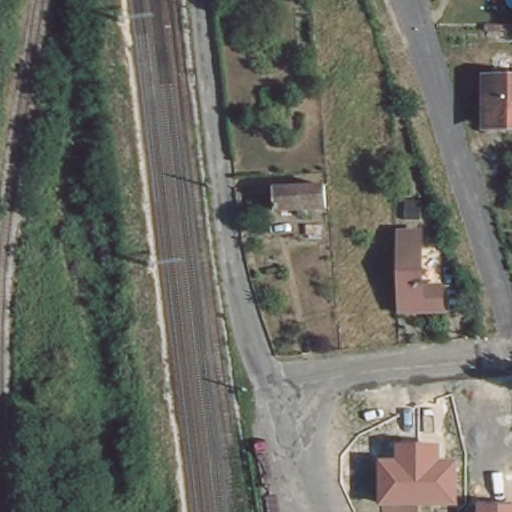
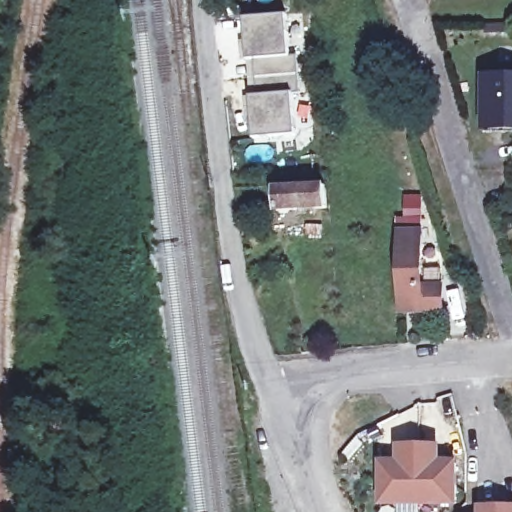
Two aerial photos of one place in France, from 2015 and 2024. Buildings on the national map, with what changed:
new [(248,60),(246,18),(286,15),(290,56),(296,56),(300,92),(292,93),(296,135),(255,138),(248,60)]
unchanged [(512,132),(485,132),(485,77),(512,77),(512,132)]
unchanged [(318,185),(320,207),(270,211),(269,187),(318,185)]
unchanged [(411,224),(421,224),(421,279),(441,279),(441,302),(412,302),(398,302),(398,224),(411,224)]
unchanged [(440,445),(440,461),(458,461),(459,506),(380,505),(380,461),(396,460),(396,445),(440,445)]
unchanged [(477,505),(512,504),(512,512),(478,512),(477,505)]

